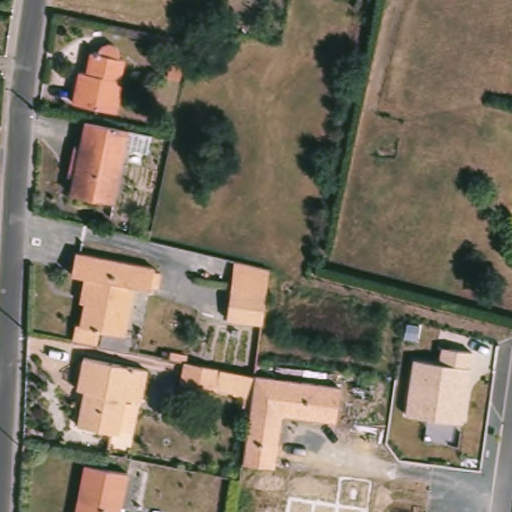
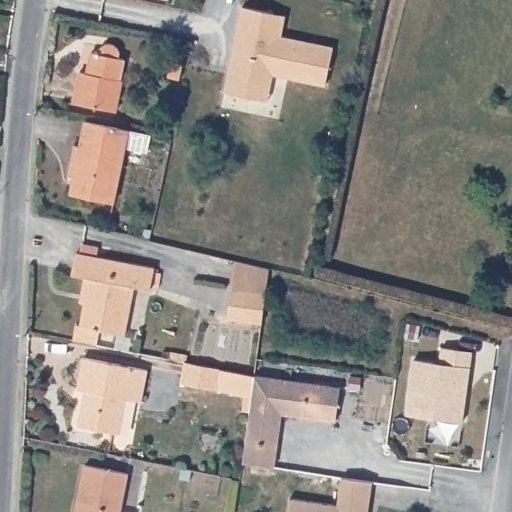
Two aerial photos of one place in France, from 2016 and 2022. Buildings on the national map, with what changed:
new [(285,15),(281,36),(332,45),(325,85),(273,75),(267,101),(224,91),(240,6),(285,15)]
unchanged [(85,77),(90,57),(95,58),(97,57),(100,53),(102,51),(105,49),(109,49),(114,50),(116,52),(118,56),(120,60),(120,63),(125,64),(120,85),(122,85),(117,116),(74,107),(80,75),(85,77)]
unchanged [(80,151),(85,126),(151,139),(147,157),(126,152),(114,208),(70,198),(74,182),(67,180),(74,150),(80,151)]
unchanged [(73,277),(77,257),(154,272),(153,276),(161,278),(159,292),(150,290),(150,293),(135,290),(125,338),(101,334),(98,349),(75,344),(77,329),(81,330),(85,308),(80,306),(81,298),(85,279),(73,277)]
unchanged [(227,313),(231,284),(234,258),(270,266),(267,289),(262,318),(227,313)]
unchanged [(462,422),(403,414),(411,358),(437,361),(440,346),(472,350),(462,422)]
unchanged [(73,393),(80,361),(143,374),(136,406),(122,403),(115,438),(73,429),(80,395),(73,393)]
unchanged [(255,379),(252,401),(235,398),(235,395),(217,392),(217,394),(180,387),(185,366),(255,379)]
unchanged [(335,421),(281,415),(274,467),(242,461),(249,413),(240,412),(242,400),(252,401),(255,379),(256,373),(340,386),(335,421)]
unchanged [(122,512),(77,512),(85,470),(129,479),(122,512)]
new [(337,505),(341,476),(372,480),(368,510),(368,512),(287,512),(289,498),(337,505)]

